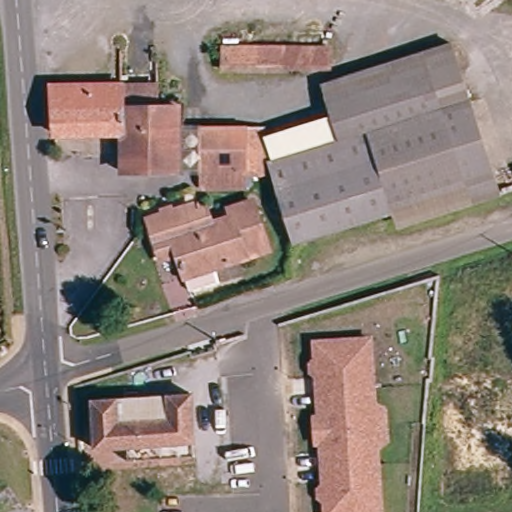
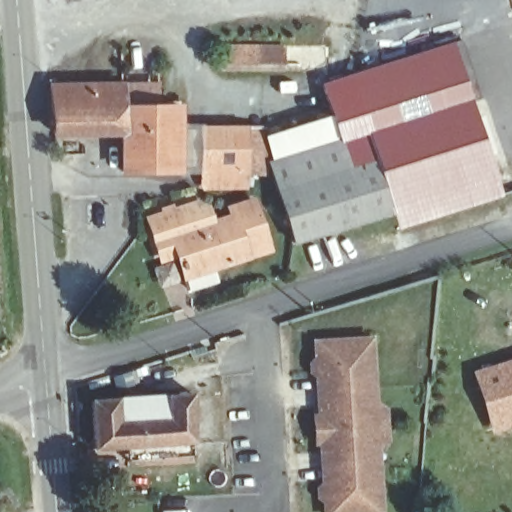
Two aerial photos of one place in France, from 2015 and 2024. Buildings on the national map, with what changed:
unchanged [(329,69),(220,69),(220,46),(331,46),(329,69)]
unchanged [(321,79),(450,49),(465,96),(475,126),(371,156),(363,132),(273,156),(264,132),(330,111),(325,94),(321,79)]
unchanged [(137,72),(157,74),(160,97),(177,97),(182,161),(200,160),(200,124),(255,126),(258,172),(245,171),(246,187),(202,186),(202,170),(121,169),(120,129),(46,129),(45,75),(137,72)]
unchanged [(502,206),(416,230),(411,216),(392,221),(376,172),(371,156),(475,126),(490,170),(502,206)]
unchanged [(392,221),(293,247),(273,185),(270,174),(265,159),(273,156),(363,132),(371,156),(376,172),(392,221)]
unchanged [(191,300),(187,285),(177,260),(162,265),(155,245),(149,224),(156,222),(191,211),(196,221),(204,219),(210,232),(234,225),(231,215),(254,210),(255,213),(267,255),(252,260),(246,261),(249,268),(215,277),(219,293),(191,300)]
new [(494,290),(490,345),(471,344),(475,287),(494,290)]
unchanged [(330,480),(325,440),(320,440),(318,427),(316,414),(322,413),(317,372),(311,370),(310,358),(315,355),(314,339),(368,334),(372,364),(374,383),(376,400),(388,406),(391,436),(381,445),(383,460),(385,480),(388,510),(361,512),(334,512),(332,498),(326,496),(325,484),(330,481),(330,480)]
new [(472,370),(512,358),(512,429),(493,435),(472,370)]
unchanged [(125,457),(124,442),(92,443),(90,395),(189,393),(190,441),(191,456),(125,457)]

